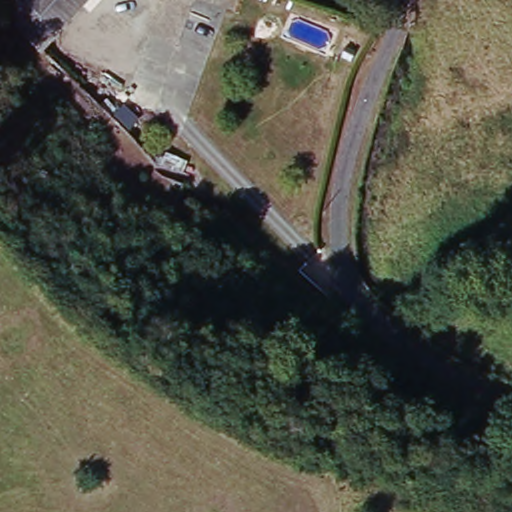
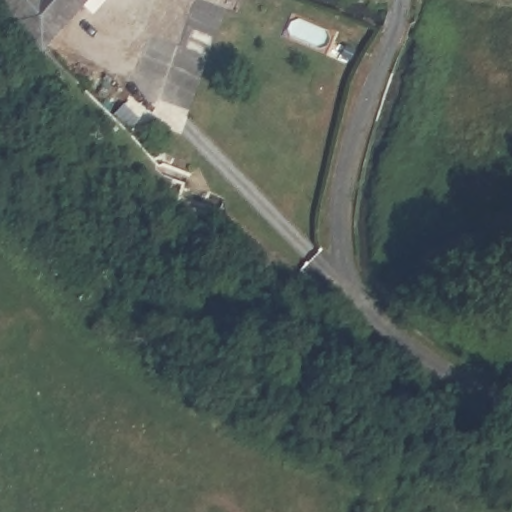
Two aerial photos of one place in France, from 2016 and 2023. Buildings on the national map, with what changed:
unchanged [(2,0),(91,0),(46,49),(1,2),(2,0)]

